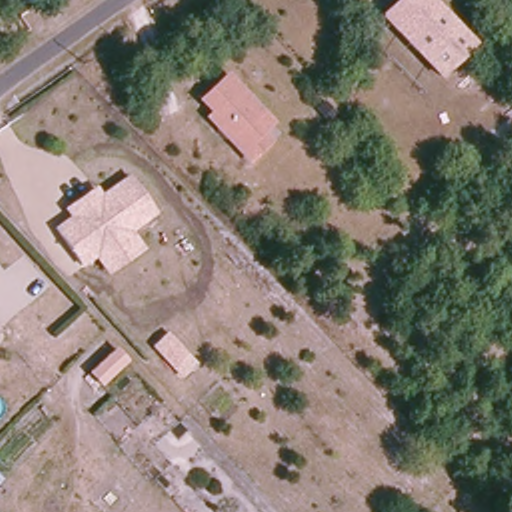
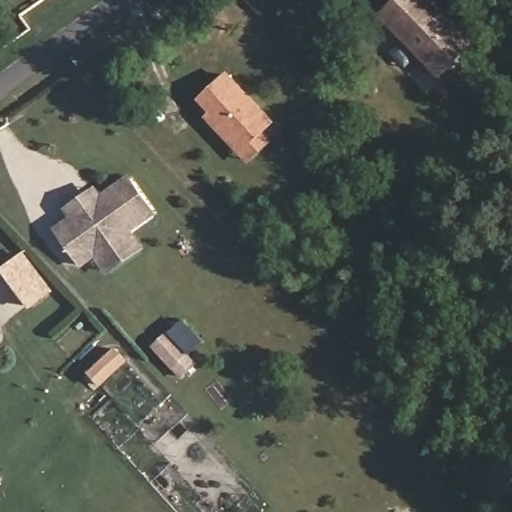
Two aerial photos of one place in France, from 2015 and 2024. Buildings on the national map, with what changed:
unchanged [(433,75),(385,24),(410,0),(424,0),(465,43),(433,75)]
unchanged [(250,157),(220,126),(208,113),(212,109),(200,96),(226,72),(271,120),(260,130),(268,139),(250,157)]
unchanged [(66,209),(94,187),(101,196),(129,177),(155,214),(131,230),(95,257),(81,266),(55,229),(71,217),(66,209)]
unchanged [(131,230),(145,249),(107,275),(95,257),(131,230)]
new [(25,255),(52,290),(31,306),(5,270),(25,255)]
unchanged [(190,360),(176,372),(159,353),(171,341),(190,360)]
unchanged [(127,359),(102,383),(91,372),(117,348),(127,359)]

